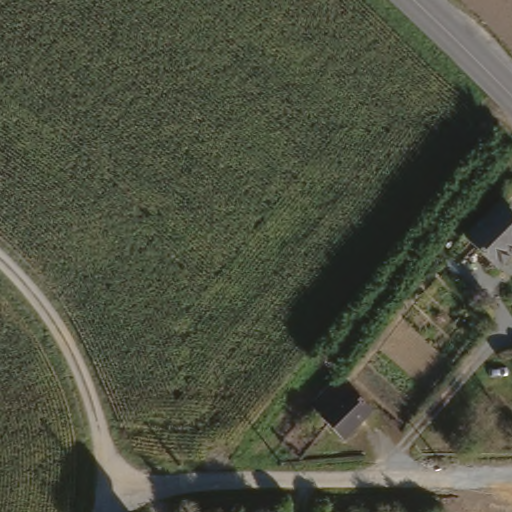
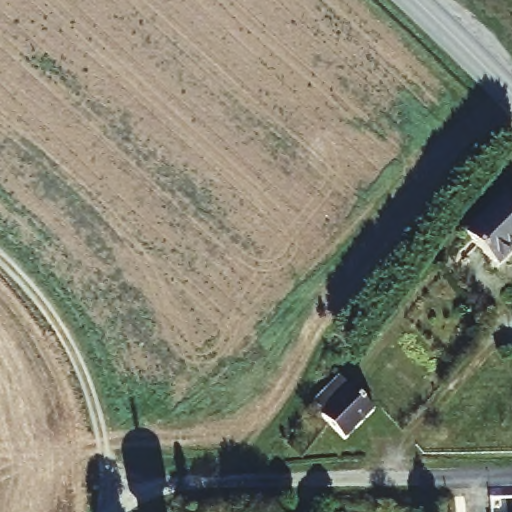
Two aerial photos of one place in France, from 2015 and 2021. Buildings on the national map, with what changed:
unchanged [(498,266),(466,235),(499,200),(512,214),(512,253),(498,266)]
unchanged [(375,407),(344,436),(343,435),(343,430),(314,396),(339,371),(375,407)]

